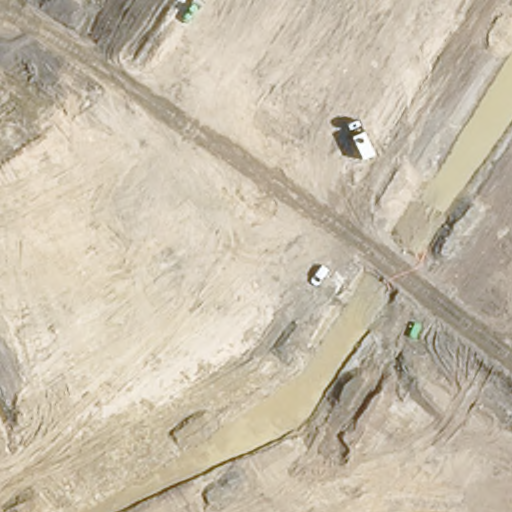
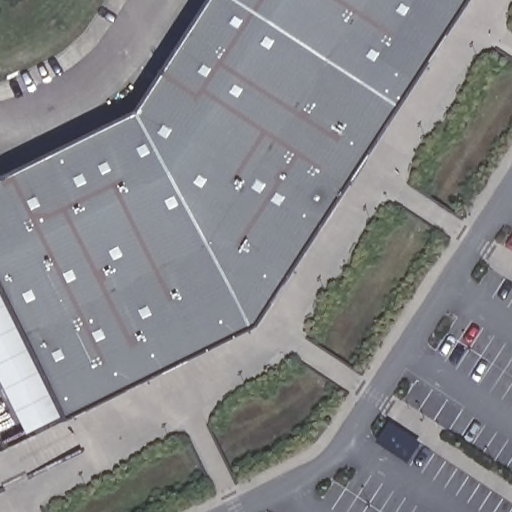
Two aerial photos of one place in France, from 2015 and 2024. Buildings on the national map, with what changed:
new [(65,420),(61,415),(25,433),(0,384),(0,178),(140,109),(210,0),(469,0),(256,327),(65,420)]
demolished [(189,107),(159,86),(192,37),(228,63),(189,107)]

